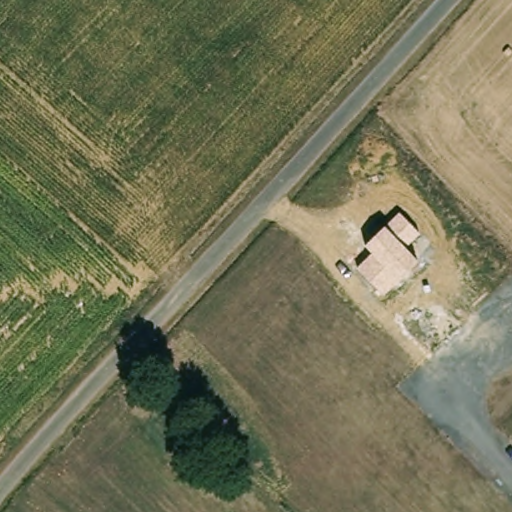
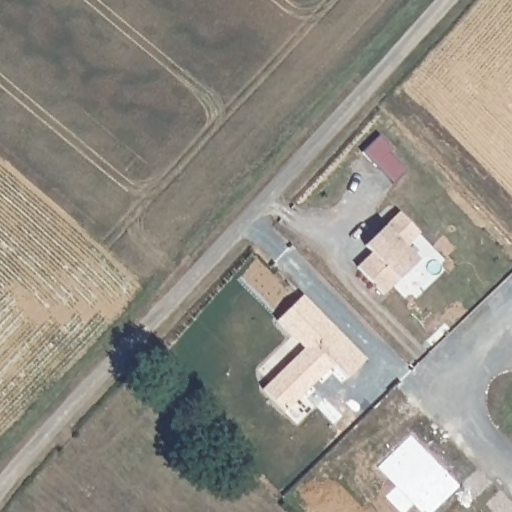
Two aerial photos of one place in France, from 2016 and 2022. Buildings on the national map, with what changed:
unchanged [(419,233),(404,247),(418,263),(400,279),(383,295),(357,267),(372,252),(365,244),(384,227),(398,212),(419,233)]
new [(367,360),(349,378),(335,364),(285,413),(261,389),(303,348),(276,321),(302,295),(367,360)]

